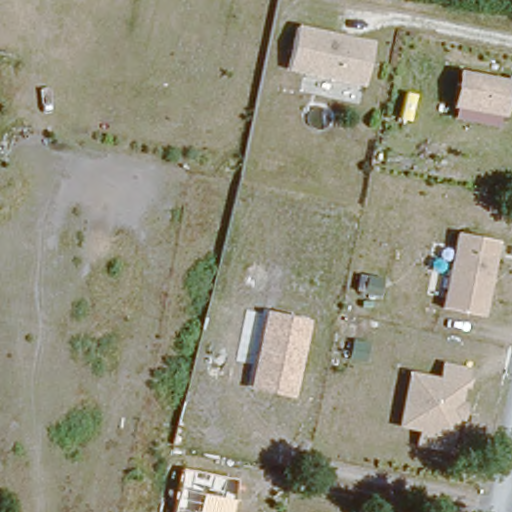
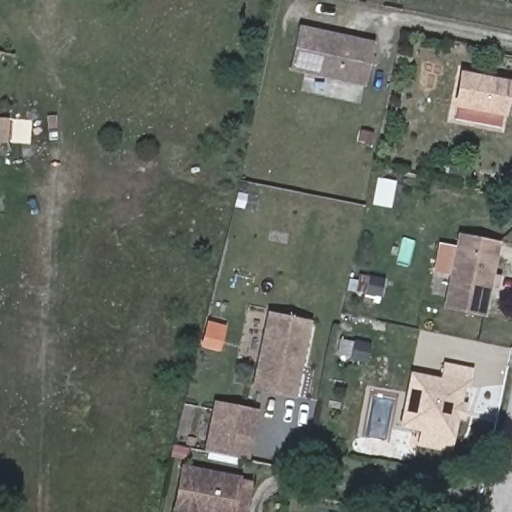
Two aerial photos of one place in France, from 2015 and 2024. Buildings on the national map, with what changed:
unchanged [(300,26),(373,42),(362,84),(291,71),(300,26)]
unchanged [(460,71),(511,81),(505,116),(456,108),(460,71)]
unchanged [(501,243),(486,318),(445,308),(458,235),(501,243)]
unchanged [(294,399),(250,390),(267,312),(311,321),(294,399)]
unchanged [(474,370),(455,452),(418,448),(420,433),(402,429),(412,373),(441,377),(445,364),(474,370)]
new [(214,401),(259,410),(248,463),(204,454),(214,401)]
unchanged [(232,512),(174,512),(182,468),(240,480),(232,512)]

